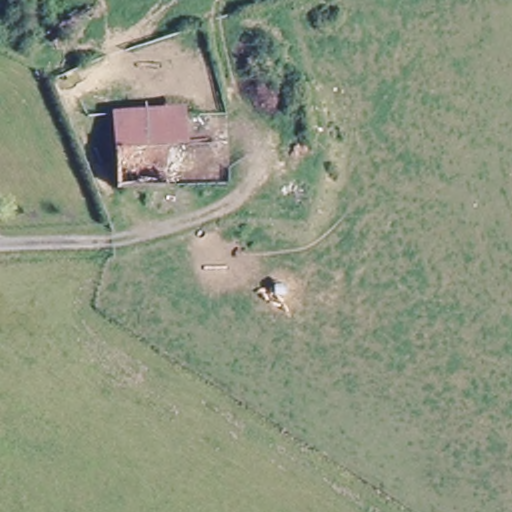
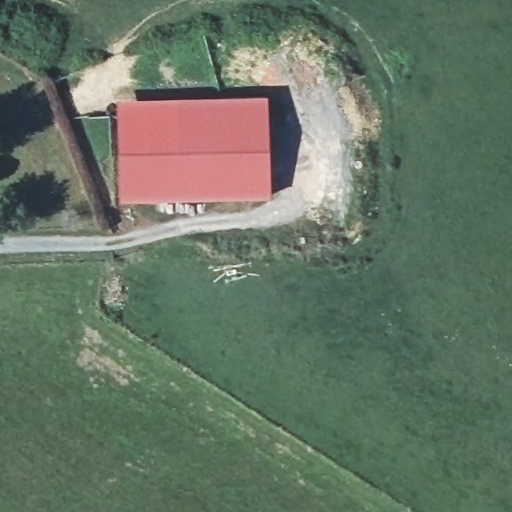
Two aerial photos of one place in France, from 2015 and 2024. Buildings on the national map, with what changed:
new [(113,97),(267,91),(272,188),(162,191),(160,153),(182,151),(181,106),(112,109),(113,97)]
unchanged [(112,109),(181,106),(182,151),(160,153),(112,156),(112,109)]
unchanged [(162,191),(115,191),(112,156),(160,153),(162,191)]

